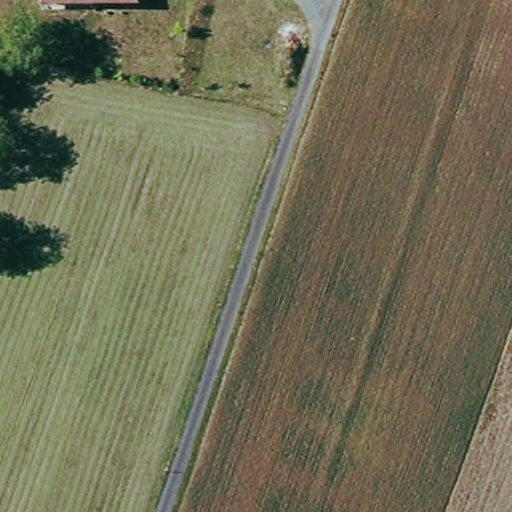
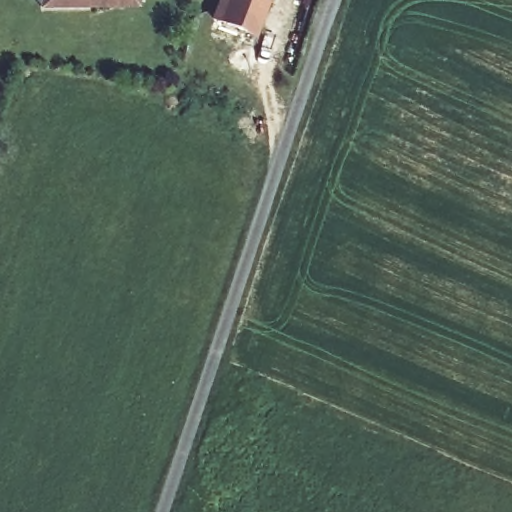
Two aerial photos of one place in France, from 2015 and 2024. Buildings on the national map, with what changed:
unchanged [(40,9),(39,0),(135,0),(135,6),(40,9)]
new [(270,0),(256,35),(209,16),(215,0),(270,0)]

